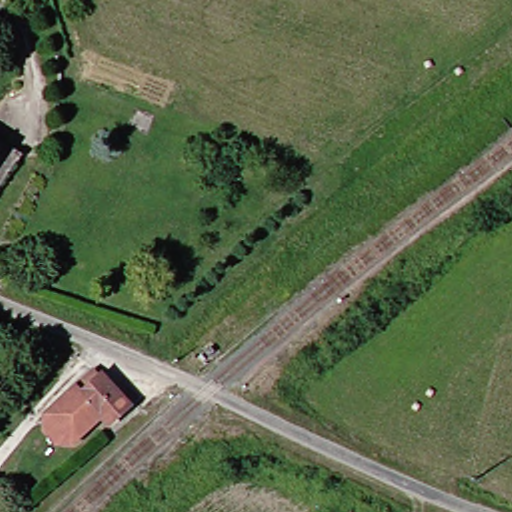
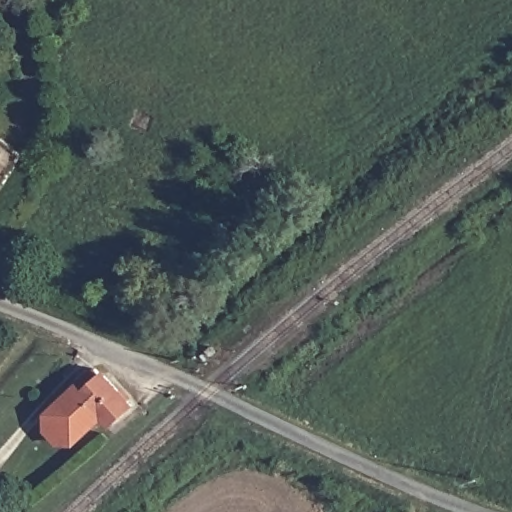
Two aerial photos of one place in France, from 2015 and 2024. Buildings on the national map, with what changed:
unchanged [(0,138),(22,152),(0,184),(0,138)]
unchanged [(54,432),(59,417),(107,374),(144,415),(125,433),(113,419),(85,445),(69,449),(54,432)]

